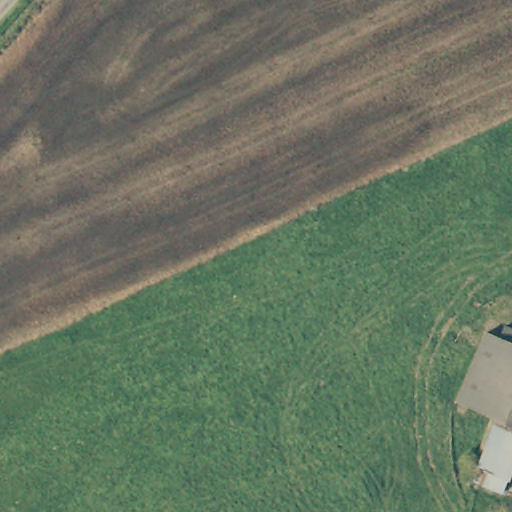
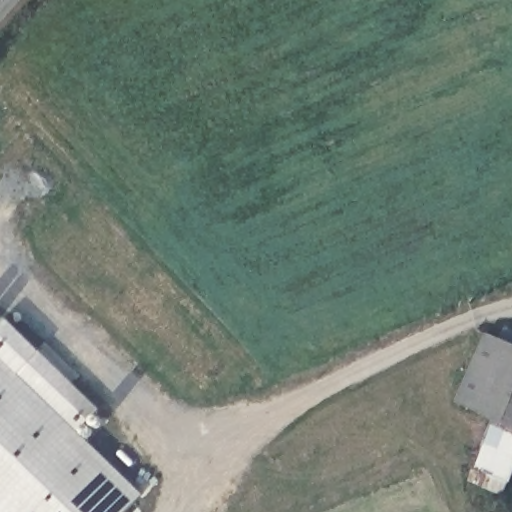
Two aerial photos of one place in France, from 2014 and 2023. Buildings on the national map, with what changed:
new [(6,318),(101,410),(80,432),(143,493),(125,512),(0,512),(0,325),(6,318)]
unchanged [(483,329),(512,338),(512,420),(459,402),(483,329)]
unchanged [(506,484),(479,477),(497,421),(512,426),(512,472),(508,485),(506,484)]

